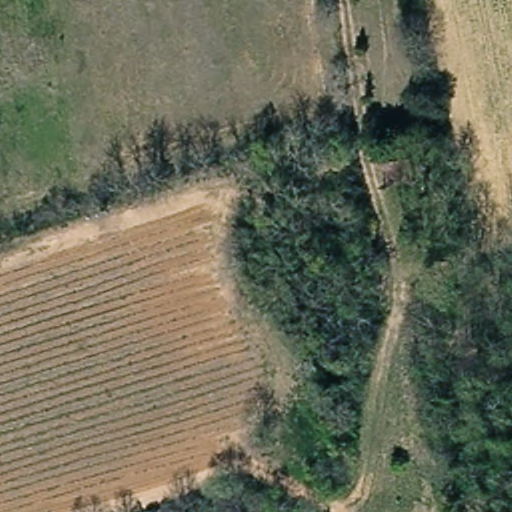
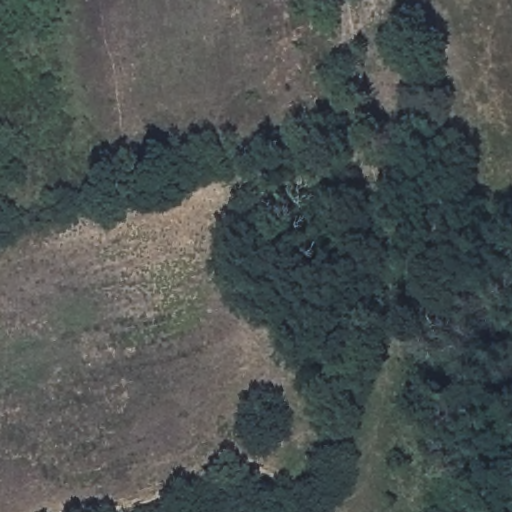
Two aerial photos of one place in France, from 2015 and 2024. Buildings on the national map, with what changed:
unchanged [(388,191),(382,164),(412,159),(418,188),(388,191)]

